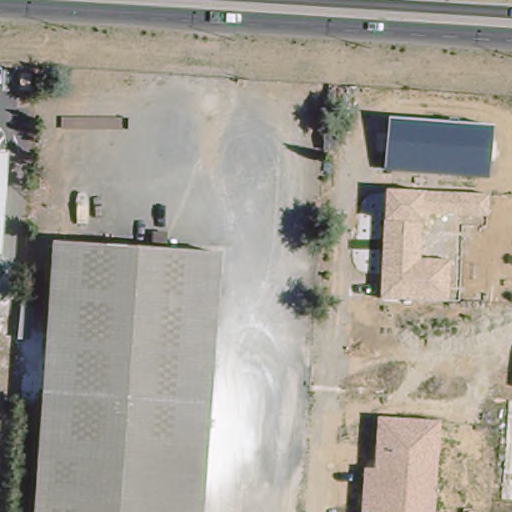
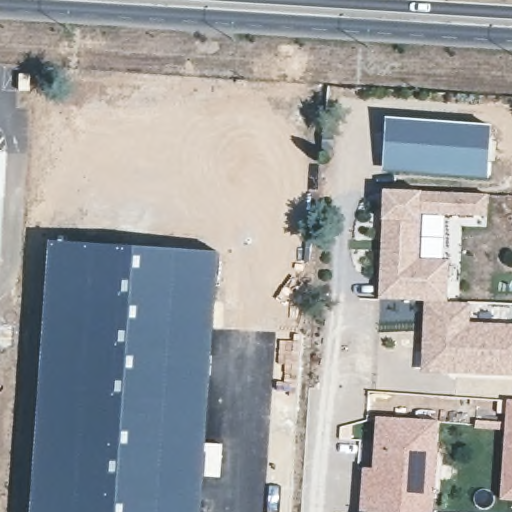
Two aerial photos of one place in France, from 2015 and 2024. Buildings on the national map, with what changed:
unchanged [(387,120),(492,128),(488,177),(383,171),(387,120)]
unchanged [(11,263),(0,262),(0,157),(18,158),(11,263)]
unchanged [(382,222),(384,192),(421,193),(487,195),(487,217),(421,214),(420,223),(418,260),(449,261),(447,300),(379,298),(382,222)]
unchanged [(207,385),(197,498),(196,512),(31,512),(37,435),(55,237),(217,255),(207,385)]
new [(447,300),(472,303),(471,323),(512,325),(512,376),(422,372),(425,300),(447,300)]
new [(512,401),(512,500),(500,499),(508,401),(512,401)]
unchanged [(433,512),(360,512),(362,468),(372,468),(377,419),(438,421),(433,512)]

